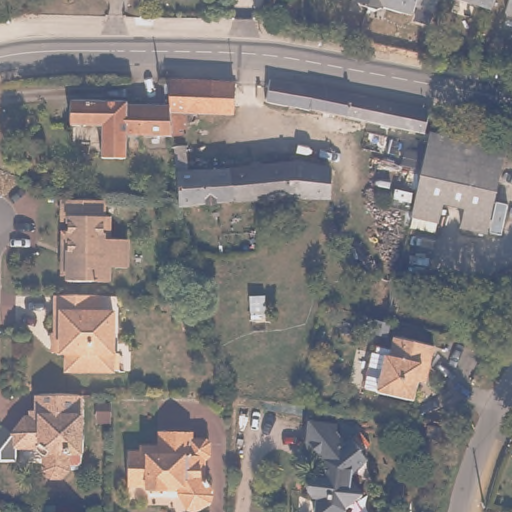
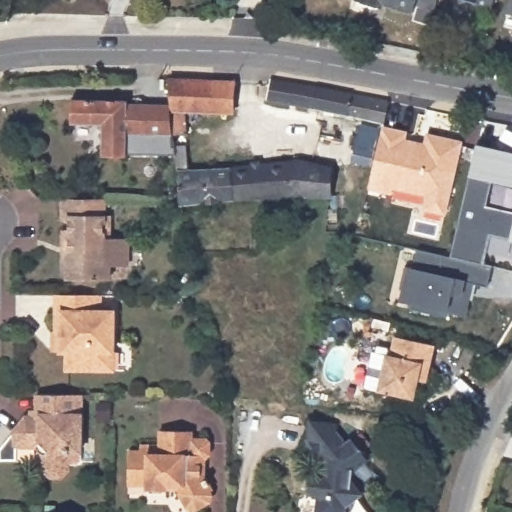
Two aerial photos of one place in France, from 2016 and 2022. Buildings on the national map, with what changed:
unchanged [(412,0),(422,0),(421,3),(412,0)]
unchanged [(474,0),(502,0),(500,9),(474,0)]
unchanged [(293,83),(346,91),(373,98),(395,102),(391,125),(361,119),(334,112),(314,108),(260,98),(267,79),(293,83)]
unchanged [(228,86),(226,115),(180,114),(180,137),(165,139),(164,136),(164,111),(164,108),(161,84),(228,86)]
unchanged [(164,136),(121,137),(120,159),(96,159),(97,126),(64,126),(65,103),(100,103),(108,103),(121,104),(122,108),(164,108),(164,111),(164,136)]
new [(465,139),(447,214),(423,209),(425,195),(393,189),(392,194),(368,189),(374,164),(353,160),(362,123),(382,127),(383,124),(391,125),(409,130),(408,137),(424,141),(426,132),(465,139)]
demolished [(423,133),(498,148),(481,230),(456,226),(457,219),(434,213),(431,221),(407,215),(423,133)]
unchanged [(181,149),(182,176),(226,171),(273,169),(289,166),(289,164),(324,174),(323,202),(262,204),(203,209),(173,210),(173,203),(169,168),(169,151),(181,149)]
unchanged [(65,230),(65,220),(57,220),(58,198),(99,198),(99,214),(105,215),(104,254),(101,254),(102,274),(60,274),(60,253),(61,229),(65,230)]
new [(493,265),(487,287),(475,284),(467,315),(448,310),(447,316),(410,308),(410,304),(400,302),(409,264),(414,265),(418,248),(493,265)]
unchanged [(245,312),(244,295),(260,294),(261,312),(245,312)]
unchanged [(53,335),(61,335),(61,314),(55,314),(56,297),(100,298),(100,315),(113,317),(111,374),(65,374),(65,354),(53,354),(53,335)]
unchanged [(372,336),(375,324),(391,327),(388,339),(372,336)]
unchanged [(418,385),(414,402),(365,390),(374,354),(388,358),(391,359),(396,340),(435,351),(430,373),(427,388),(418,385)]
unchanged [(58,456),(57,463),(57,472),(55,477),(51,479),(45,479),(39,477),(36,476),(33,473),(34,458),(36,455),(28,448),(24,452),(2,451),(1,436),(15,419),(30,419),(29,399),(71,399),(70,442),(70,457),(58,456)]
unchanged [(359,457),(348,468),(345,484),(356,496),(340,511),(340,512),(312,512),(313,498),(303,497),(305,477),(314,478),(321,472),(316,466),(319,463),(311,452),(302,451),(304,425),(333,427),(332,435),(340,446),(346,442),(359,457)]
unchanged [(431,439),(422,439),(423,427),(436,428),(435,435),(435,440),(431,439)]
unchanged [(123,455),(136,456),(136,450),(156,450),(156,434),(187,436),(187,443),(202,443),(206,449),(205,459),(202,463),(198,463),(198,480),(207,494),(205,494),(207,497),(207,506),(195,512),(182,512),(174,496),(177,489),(163,489),(161,492),(141,493),(141,488),(123,488),(123,455)]

